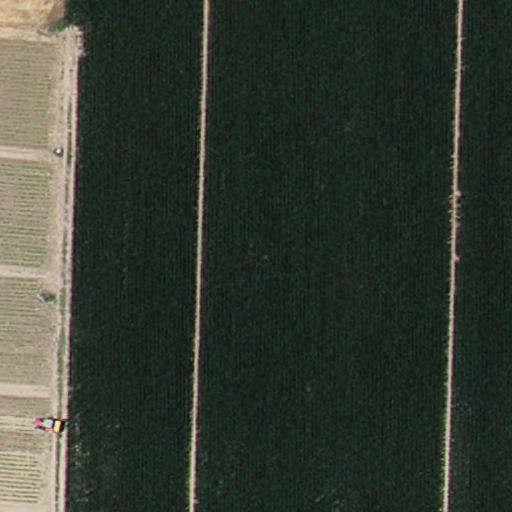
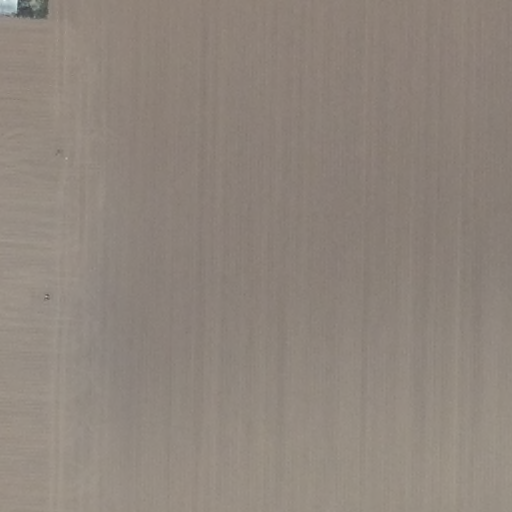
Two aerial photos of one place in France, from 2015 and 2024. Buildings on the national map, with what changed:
new [(0,11),(0,0),(18,0),(17,12),(0,11)]

